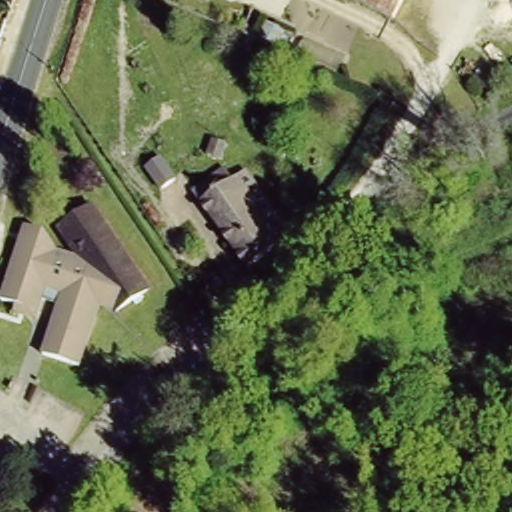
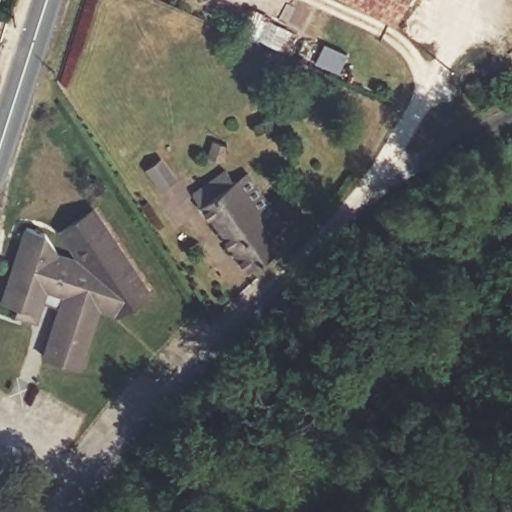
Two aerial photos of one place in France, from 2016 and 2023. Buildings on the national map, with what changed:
unchanged [(351,0),(406,0),(393,22),(351,0)]
unchanged [(253,54),(259,56),(256,62),(250,59),(253,54)]
unchanged [(221,153),(234,157),(229,173),(216,168),(221,153)]
unchanged [(258,221),(269,212),(281,228),(271,236),(278,247),(246,270),(190,198),(221,173),(258,221)]
unchanged [(21,302),(6,297),(12,278),(30,221),(48,227),(61,247),(60,250),(86,258),(64,224),(94,202),(149,286),(118,308),(112,297),(101,303),(93,329),(60,308),(63,299),(46,293),(44,299),(41,309),(38,316),(18,311),(21,302)]
unchanged [(63,359),(46,353),(60,308),(93,329),(81,364),(63,359)]

